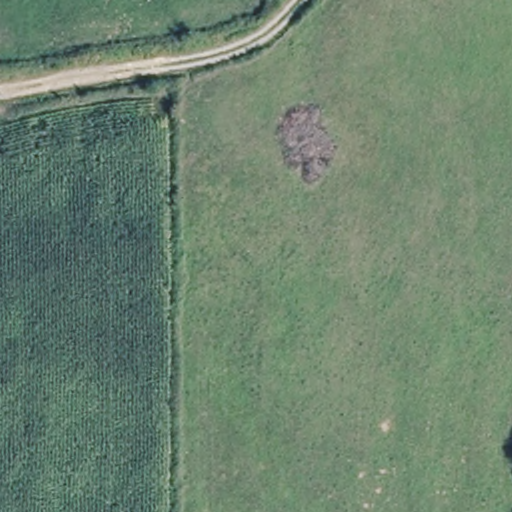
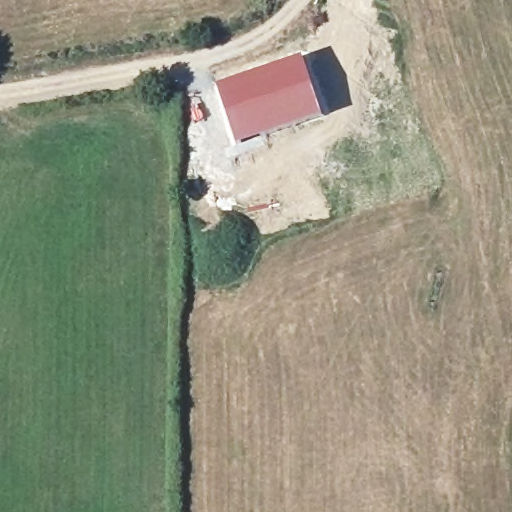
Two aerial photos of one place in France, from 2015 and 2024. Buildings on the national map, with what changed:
new [(304,55),(323,116),(236,146),(215,84),(304,55)]

